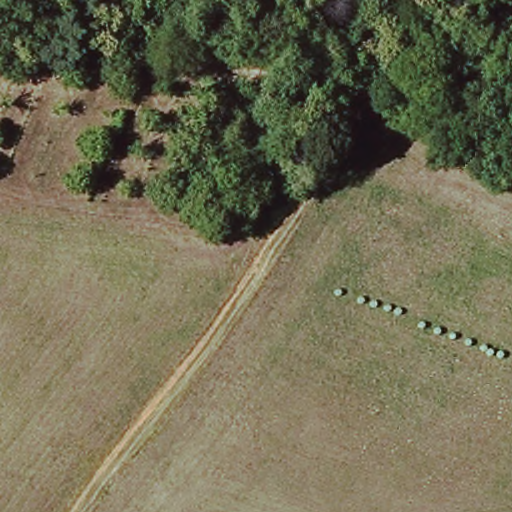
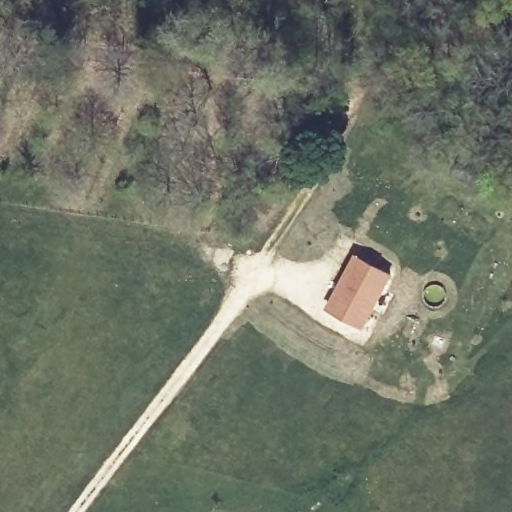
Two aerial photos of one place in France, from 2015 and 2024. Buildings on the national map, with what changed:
new [(394,272),(365,328),(326,308),(356,252),(394,272)]

